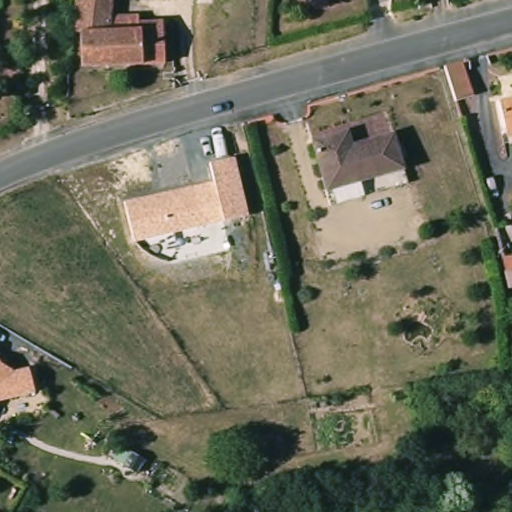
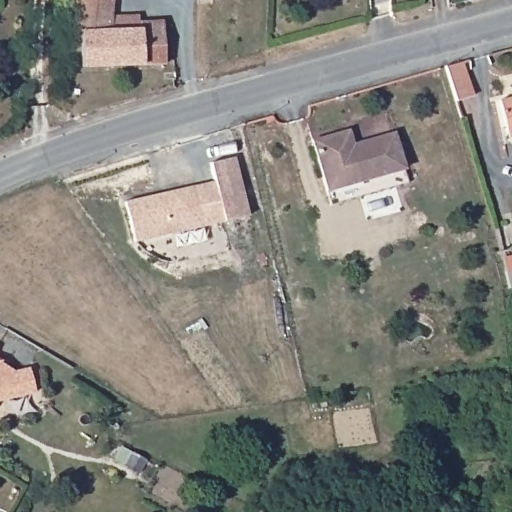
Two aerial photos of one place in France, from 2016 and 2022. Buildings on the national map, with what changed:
unchanged [(75,10),(76,0),(114,0),(111,16),(127,20),(125,33),(137,33),(137,25),(163,24),(164,67),(80,69),(80,37),(72,37),(75,15),(75,10)]
unchanged [(465,57),(476,92),(459,97),(448,62),(465,57)]
unchanged [(510,144),(500,105),(512,102),(512,144),(510,144)]
unchanged [(330,188),(317,138),(352,129),(356,143),(397,133),(406,169),(330,188)]
unchanged [(208,161),(235,156),(249,217),(132,243),(122,199),(212,179),(208,161)]
unchanged [(332,203),(330,188),(406,169),(410,184),(332,203)]
unchanged [(512,259),(512,272),(499,275),(496,262),(512,259)]
unchanged [(0,365),(10,371),(32,372),(31,385),(30,404),(0,402),(0,365)]

